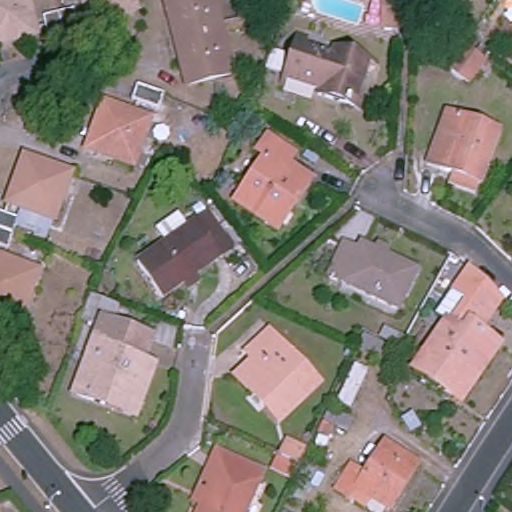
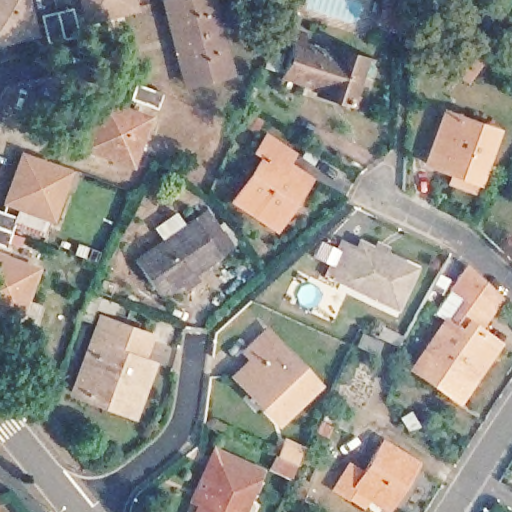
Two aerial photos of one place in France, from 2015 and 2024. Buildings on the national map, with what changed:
unchanged [(22,0),(30,29),(7,35),(0,37),(0,0),(22,0)]
unchanged [(93,20),(88,0),(138,0),(140,9),(113,15),(93,20)]
unchanged [(212,0),(230,70),(184,81),(180,63),(167,11),(164,0),(212,0)]
unchanged [(66,3),(73,31),(42,41),(34,11),(66,3)]
unchanged [(396,7),(394,35),(378,34),(380,3),(396,7)]
unchanged [(302,35),(300,42),(325,50),(327,43),(363,55),(354,86),(363,89),(358,103),(314,89),(315,82),(281,72),(292,32),(302,35)]
unchanged [(485,62),(477,75),(469,72),(478,57),(485,62)]
unchanged [(467,76),(463,82),(445,69),(449,64),(467,76)]
unchanged [(89,137),(103,99),(148,115),(130,162),(112,155),(85,146),(89,137)]
unchanged [(448,100),(510,122),(482,197),(442,182),(446,170),(419,159),(448,100)]
unchanged [(275,222),(241,199),(271,157),(260,150),(270,134),(300,153),(289,168),(313,184),(304,197),(283,227),(275,222)]
unchanged [(4,197),(22,152),(62,167),(72,170),(60,199),(53,217),(4,197)]
unchanged [(16,213),(4,245),(0,243),(0,207),(16,213)]
unchanged [(166,298),(145,267),(164,255),(156,240),(180,224),(189,237),(204,227),(226,258),(166,298)]
unchanged [(362,248),(363,243),(421,267),(406,303),(331,272),(344,240),(362,248)]
unchanged [(11,310),(0,306),(0,255),(37,268),(30,287),(20,313),(11,310)]
unchanged [(469,399),(460,394),(415,371),(444,323),(431,316),(461,267),(477,283),(493,300),(484,317),(475,333),(488,341),(498,346),(469,399)]
unchanged [(103,397),(73,387),(101,308),(127,318),(150,328),(142,352),(150,355),(136,396),(130,408),(103,397)]
unchanged [(278,422),(240,380),(259,364),(250,351),(271,333),(282,345),(320,386),(278,422)]
unchanged [(414,360),(411,367),(402,363),(406,356),(414,360)]
unchanged [(187,509),(216,445),(267,464),(260,477),(221,463),(202,512),(194,512),(187,509)]
unchanged [(425,463),(396,508),(366,489),(360,498),(345,489),(357,467),(373,477),(394,445),(425,463)]
unchanged [(247,512),(202,512),(221,463),(260,477),(247,512)]

